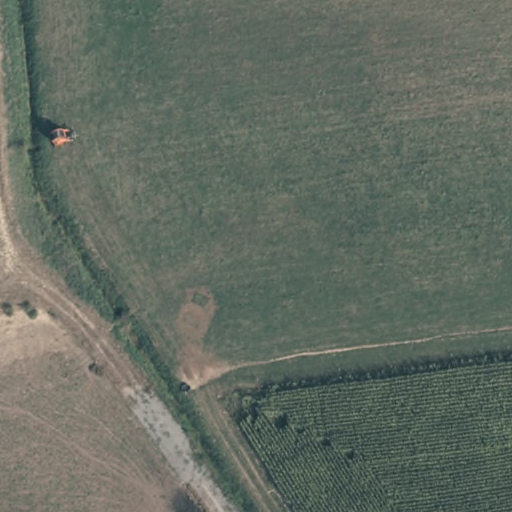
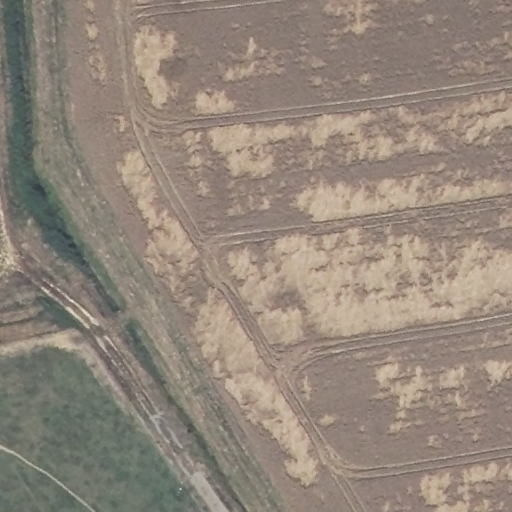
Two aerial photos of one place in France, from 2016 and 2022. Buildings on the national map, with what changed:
[]

